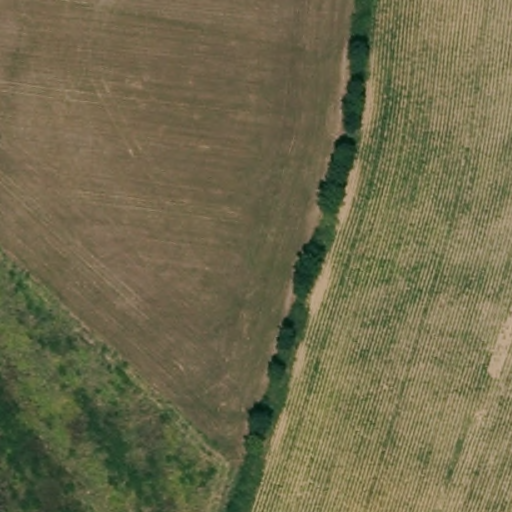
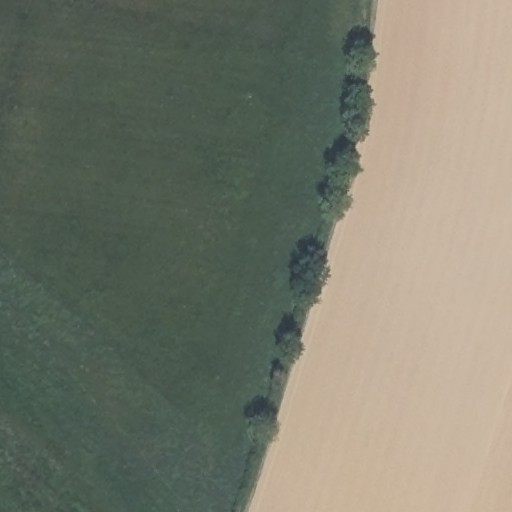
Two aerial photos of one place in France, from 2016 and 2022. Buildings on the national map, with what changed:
[]

